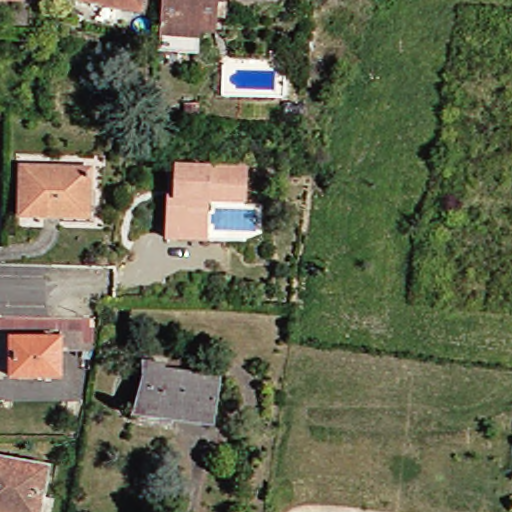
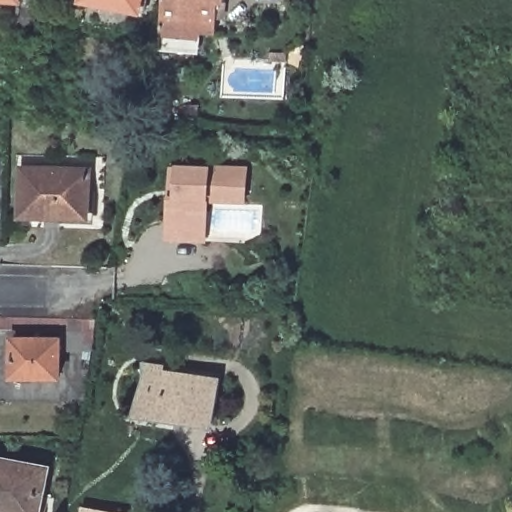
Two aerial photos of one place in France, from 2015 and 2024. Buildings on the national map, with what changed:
unchanged [(0,1),(0,0),(17,0),(17,3),(0,1)]
unchanged [(79,0),(140,0),(138,14),(79,1),(79,0)]
unchanged [(152,28),(152,19),(154,0),(210,0),(209,24),(192,22),(192,31),(191,31),(152,28)]
unchanged [(85,218),(20,217),(19,170),(86,170),(85,218)]
unchanged [(247,198),(247,208),(212,205),(210,245),(169,242),(172,201),(174,173),(181,173),(249,178),(247,198)]
unchanged [(92,354),(60,354),(59,384),(9,384),(10,343),(59,344),(59,335),(0,335),(0,322),(92,323),(92,354)]
unchanged [(128,420),(130,412),(141,379),(140,371),(140,364),(160,368),(161,374),(215,382),(209,423),(170,418),(168,426),(128,420)]
unchanged [(38,512),(0,512),(0,464),(45,473),(38,512)]
new [(81,508),(103,512),(80,512),(81,508)]

